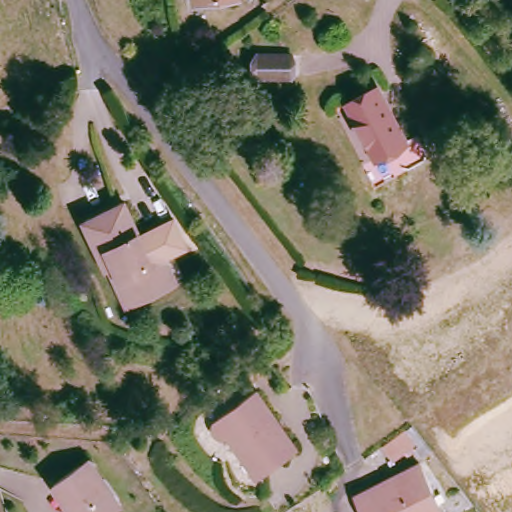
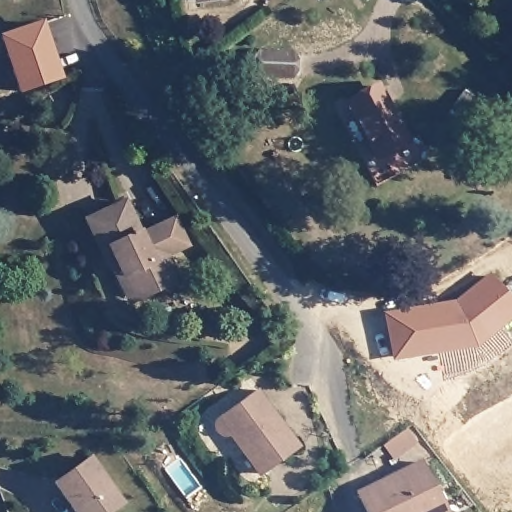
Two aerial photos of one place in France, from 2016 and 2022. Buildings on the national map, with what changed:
unchanged [(200,0),(223,0),(201,3),(200,0)]
new [(62,79),(17,94),(0,41),(0,35),(43,21),(62,79)]
unchanged [(290,54),(290,77),(256,77),(256,55),(290,54)]
unchanged [(377,89),(405,142),(376,158),(348,103),(377,89)]
unchanged [(161,245),(177,281),(140,298),(128,294),(115,265),(106,268),(85,221),(125,201),(140,234),(148,251),(154,247),(161,245)]
new [(161,245),(154,247),(148,251),(140,234),(176,217),(190,249),(167,258),(161,245)]
new [(512,302),(512,318),(476,347),(391,362),(383,313),(455,301),(490,276),(512,302)]
unchanged [(215,431),(216,426),(218,422),(258,395),(298,452),(261,477),(246,457),(243,458),(230,441),(227,442),(224,441),(219,437),(217,434),(215,431)]
unchanged [(406,442),(416,456),(393,472),(383,458),(406,442)]
unchanged [(89,455),(122,498),(104,512),(74,512),(53,483),(89,455)]
unchanged [(443,512),(362,512),(358,507),(414,465),(442,502),(447,509),(443,512)]

